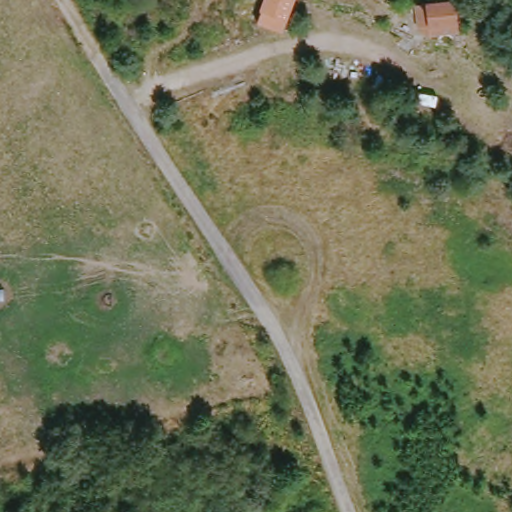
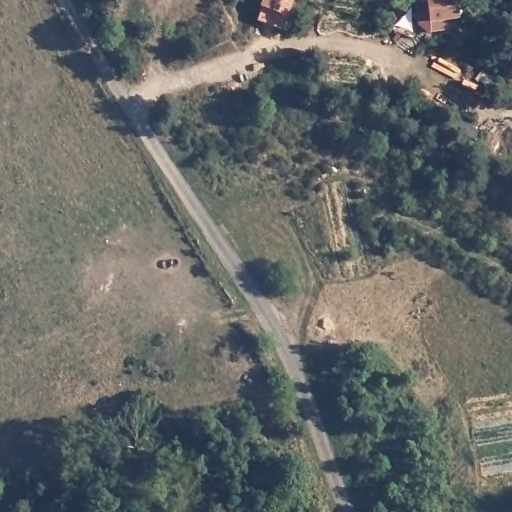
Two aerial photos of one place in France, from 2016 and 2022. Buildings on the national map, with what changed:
unchanged [(256,16),(262,0),(287,0),(277,28),(256,16)]
unchanged [(451,0),(454,24),(425,29),(415,25),(413,1),(417,0),(451,0)]

